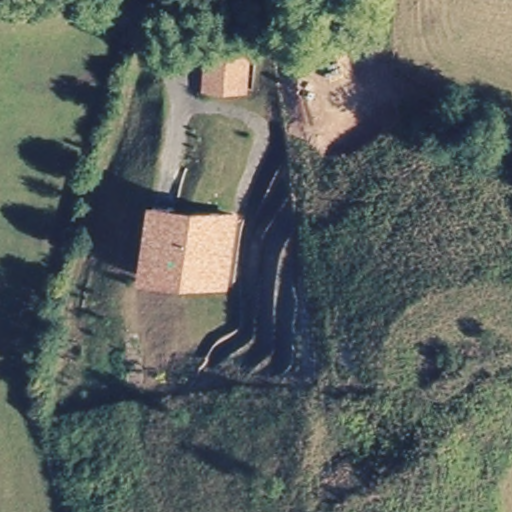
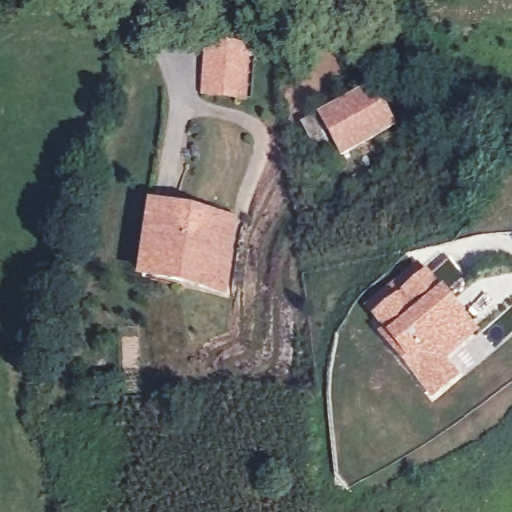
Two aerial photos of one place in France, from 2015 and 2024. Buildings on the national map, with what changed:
unchanged [(246,98),(235,97),(205,94),(209,47),(240,50),(250,51),(246,98)]
new [(398,126),(344,157),(321,117),(374,86),(398,126)]
unchanged [(143,275),(154,207),(169,209),(210,217),(233,221),(222,290),(200,286),(180,282),(143,275)]
new [(429,275),(481,333),(448,361),(463,377),(431,403),(378,340),(384,335),(373,322),(364,311),(418,263),(429,275)]
new [(512,332),(499,317),(512,307),(512,332)]

